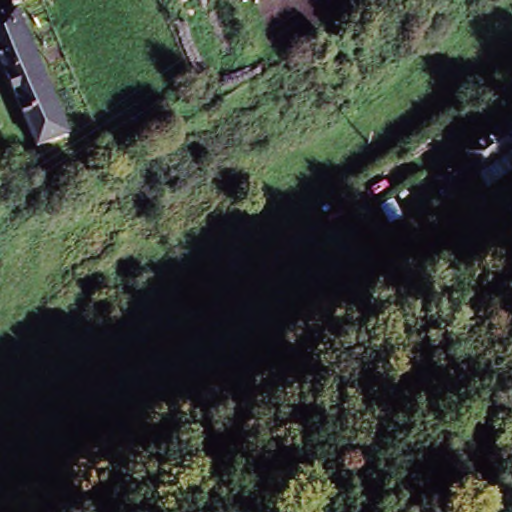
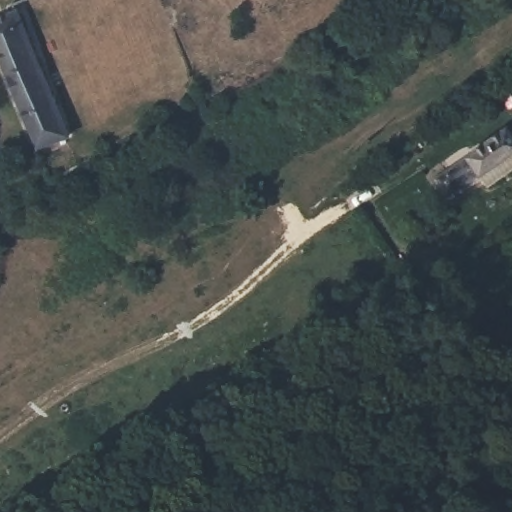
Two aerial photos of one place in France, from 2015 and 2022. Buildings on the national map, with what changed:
unchanged [(0,65),(0,15),(11,10),(59,138),(33,149),(0,65)]
unchanged [(479,170),(449,189),(435,167),(506,125),(512,136),(512,148),(500,156),(510,172),(488,185),(479,170)]
unchanged [(454,297),(434,310),(424,293),(444,278),(454,297)]

